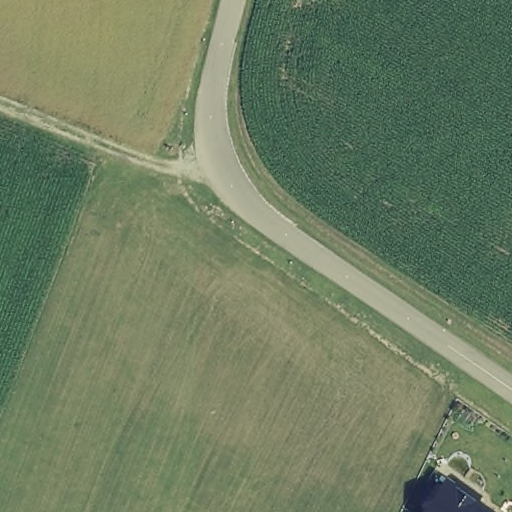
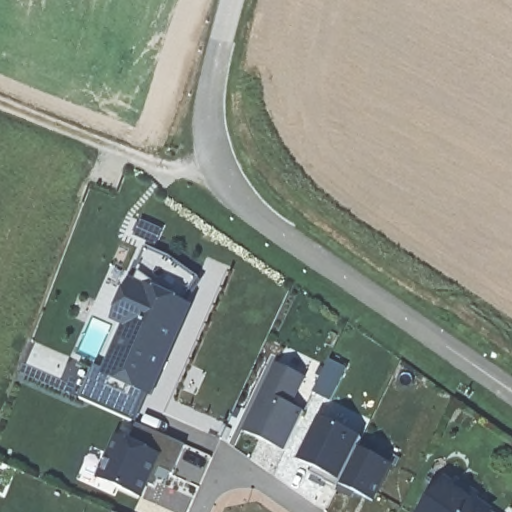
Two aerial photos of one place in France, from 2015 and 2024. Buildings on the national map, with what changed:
new [(185,305),(192,307),(152,398),(144,395),(131,420),(80,401),(91,374),(105,377),(126,329),(112,322),(131,282),(143,253),(194,284),(185,305)]
new [(286,452),(243,432),(259,397),(275,364),(305,380),(293,407),(304,412),(286,452)]
new [(313,474),(315,469),(298,460),(319,416),(363,440),(358,449),(339,487),(313,474)]
new [(150,484),(144,501),(96,482),(116,438),(132,444),(138,426),(185,446),(174,474),(160,470),(154,486),(150,484)]
new [(358,449),(392,465),(374,502),(355,493),(353,498),(337,490),(358,449)]
unchanged [(453,481),(475,496),(472,501),(486,512),(411,512),(439,475),(450,483),(453,481)]

